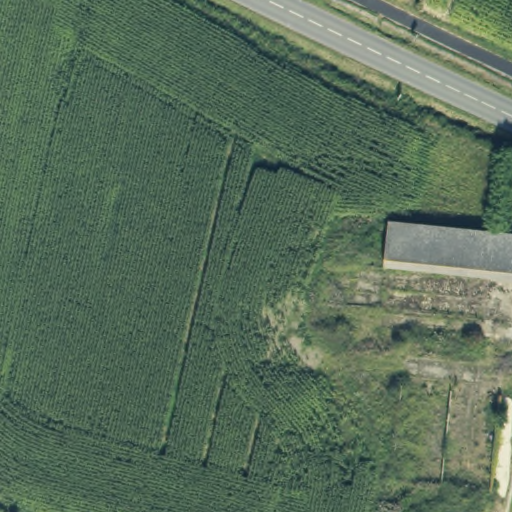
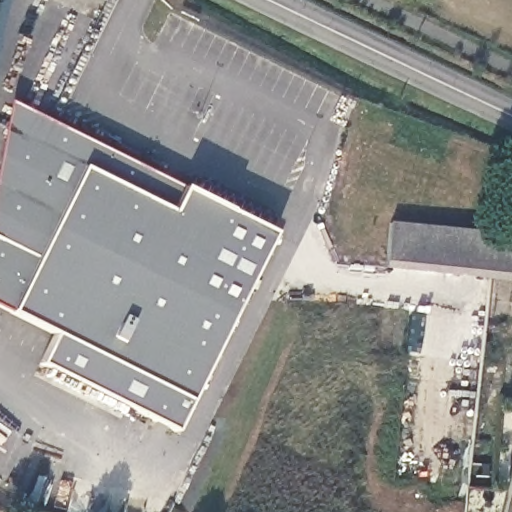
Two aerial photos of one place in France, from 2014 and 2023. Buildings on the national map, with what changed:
new [(0,0),(5,0),(0,22),(0,0)]
new [(229,210),(274,232),(177,432),(39,365),(54,334),(11,312),(0,306),(0,156),(10,102),(182,187),(229,210)]
unchanged [(489,275),(389,264),(393,222),(494,232),(512,233),(512,278),(489,275)]

